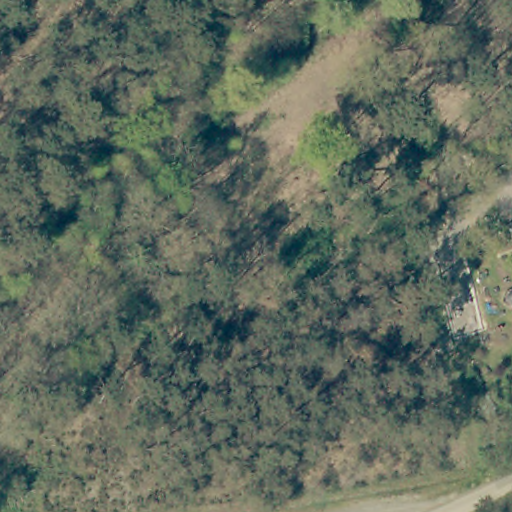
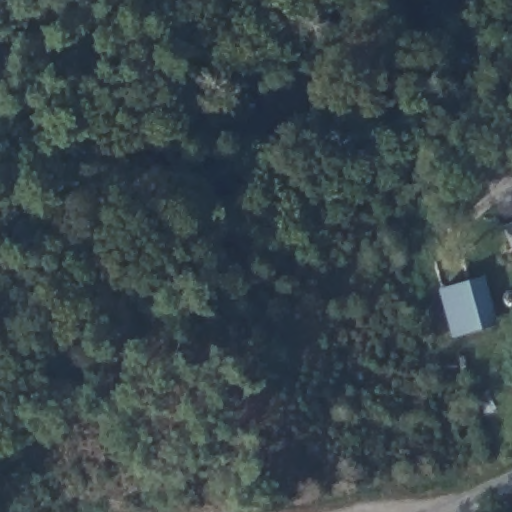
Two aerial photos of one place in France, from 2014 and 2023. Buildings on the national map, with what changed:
unchanged [(512,223),(512,251),(502,228),(512,223)]
new [(454,339),(440,291),(487,276),(499,325),(454,339)]

